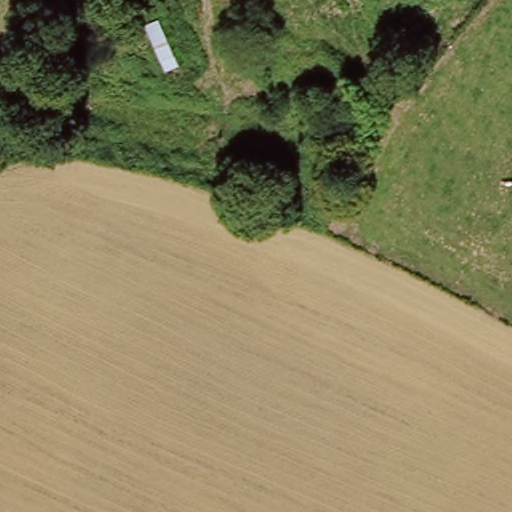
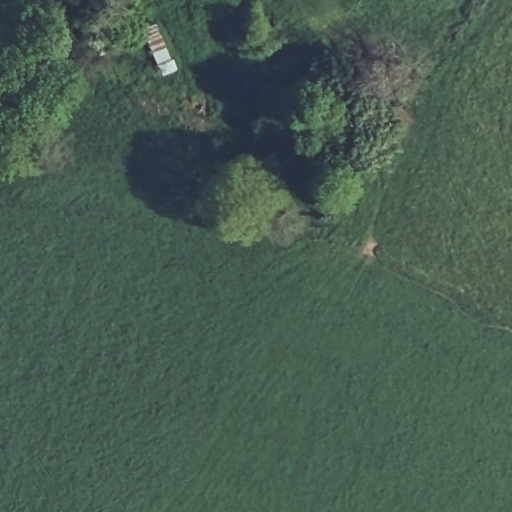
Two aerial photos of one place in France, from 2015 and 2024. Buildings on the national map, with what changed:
[]

